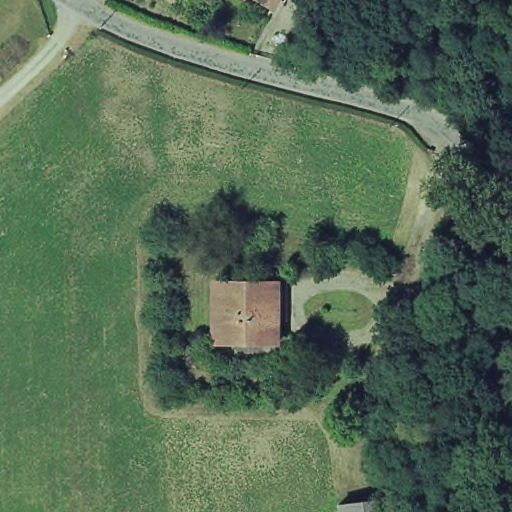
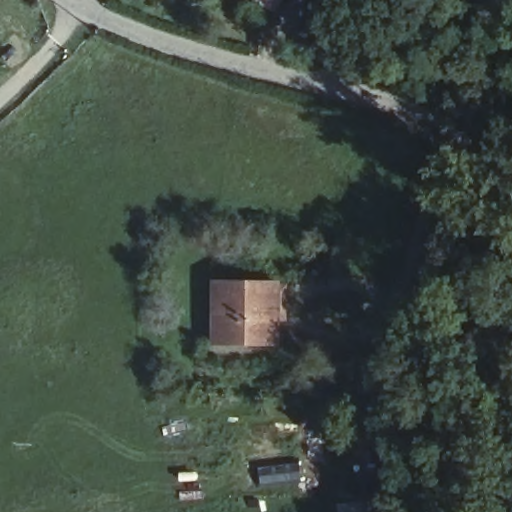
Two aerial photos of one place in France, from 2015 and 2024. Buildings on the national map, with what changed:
unchanged [(254,0),(273,0),(269,8),(254,0)]
unchanged [(276,343),(211,345),(208,285),(274,283),(276,343)]
unchanged [(389,498),(390,512),(341,512),(341,503),(389,498)]

